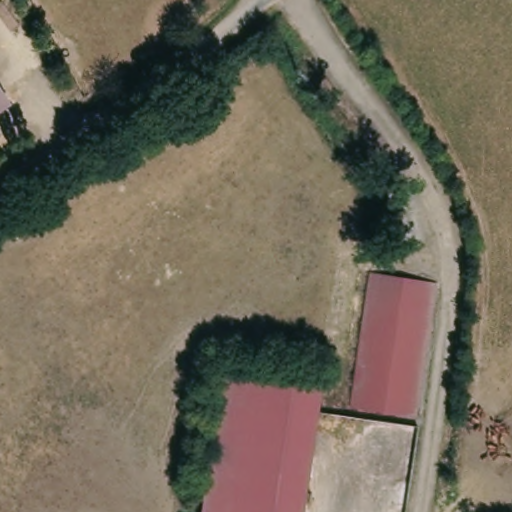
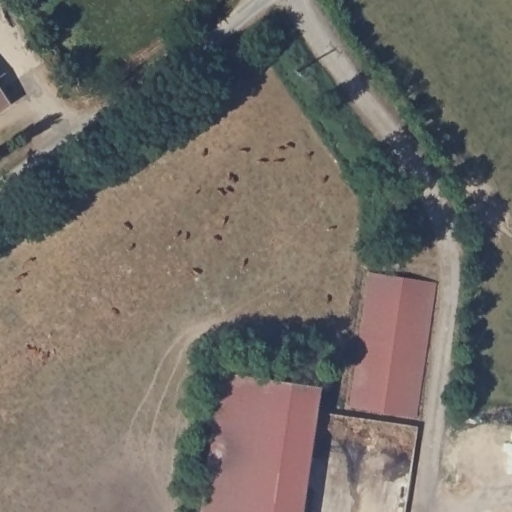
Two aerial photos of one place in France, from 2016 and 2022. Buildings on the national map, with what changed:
unchanged [(10,110),(0,116),(0,94),(10,110)]
unchanged [(365,317),(370,278),(379,279),(434,286),(419,415),(354,407),(365,317)]
unchanged [(324,386),(308,512),(209,512),(226,374),(324,386)]

